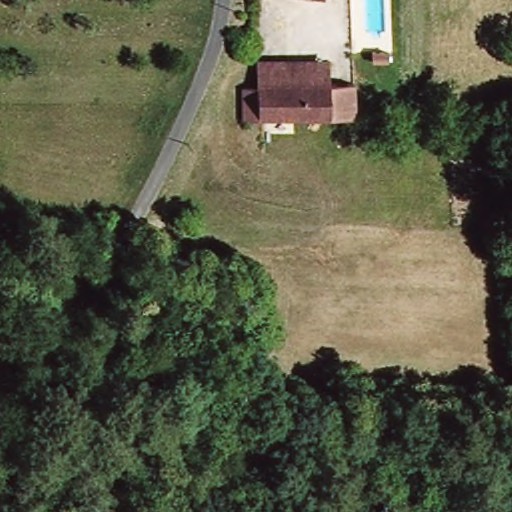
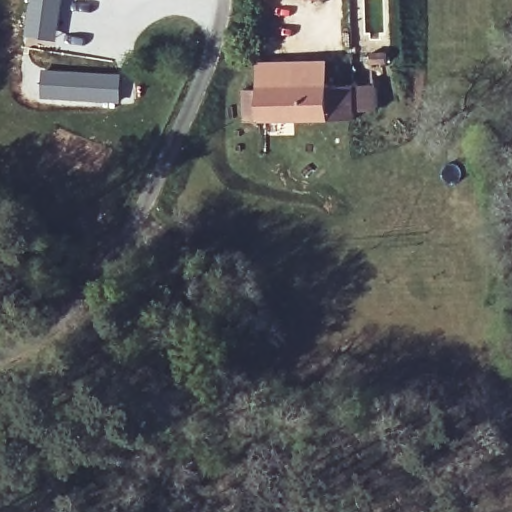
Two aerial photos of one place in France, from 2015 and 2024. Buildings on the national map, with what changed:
new [(29,0),(62,0),(55,44),(24,39),(29,0)]
unchanged [(372,53),(388,53),(389,62),(372,65),(372,53)]
unchanged [(266,62),(341,62),(341,82),(266,82),(266,62)]
new [(121,101),(42,96),(43,70),(124,75),(121,101)]
unchanged [(367,83),(366,117),(256,116),(256,82),(266,82),(341,82),(367,83)]

